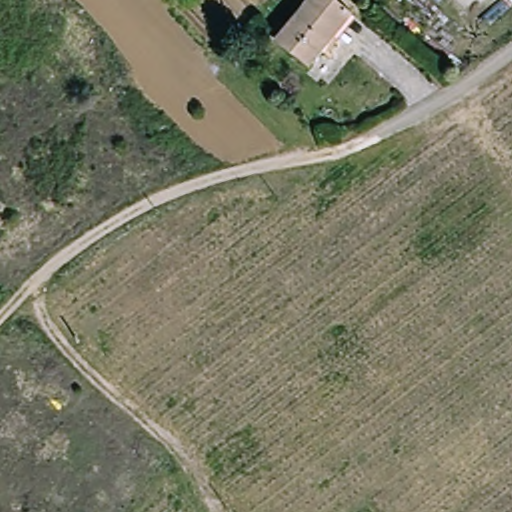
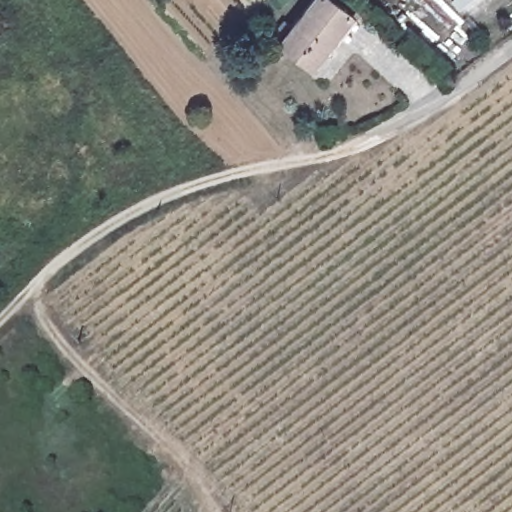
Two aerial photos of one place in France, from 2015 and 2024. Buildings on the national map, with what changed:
unchanged [(313,0),(328,0),(341,9),(353,19),(338,35),(310,68),(278,43),(313,0)]

